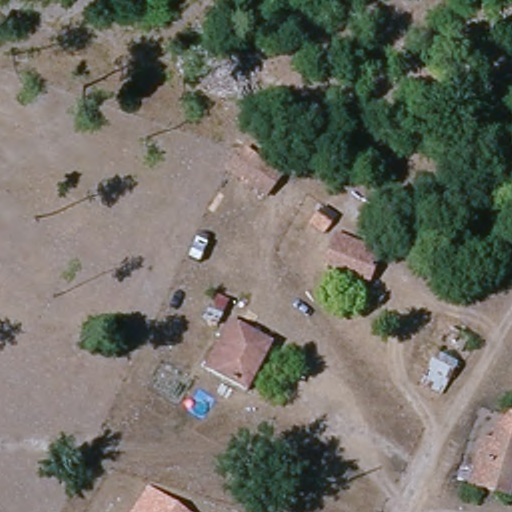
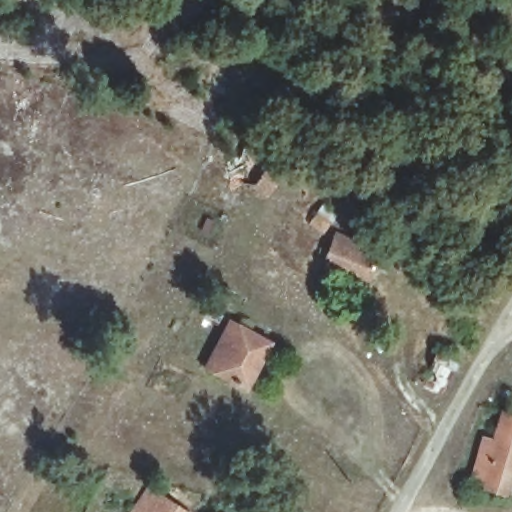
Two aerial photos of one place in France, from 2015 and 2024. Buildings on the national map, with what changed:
unchanged [(275,169),(257,189),(236,169),(252,150),(275,169)]
unchanged [(336,215),(326,230),(313,222),(324,205),(336,215)]
unchanged [(330,263),(341,232),(358,241),(355,248),(380,261),(370,281),(330,263)]
unchanged [(275,343),(250,390),(210,367),(234,318),(275,343)]
unchanged [(419,381),(448,322),(470,333),(444,395),(419,381)]
unchanged [(512,484),(509,492),(470,478),(486,429),(496,432),(503,407),(512,411),(512,484)]
unchanged [(149,488),(183,512),(133,512),(149,488)]

